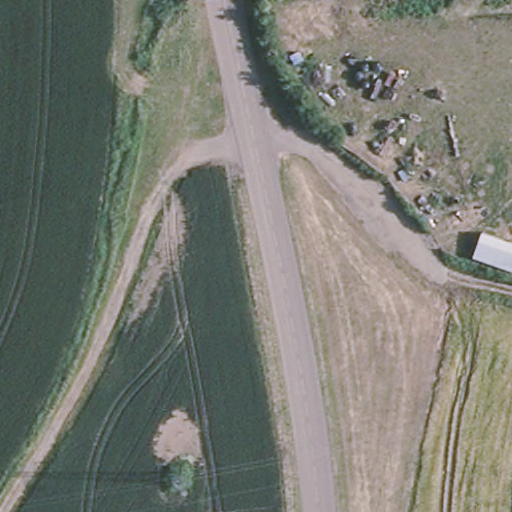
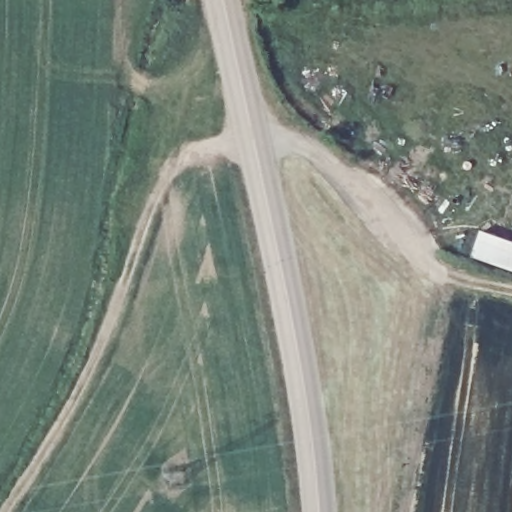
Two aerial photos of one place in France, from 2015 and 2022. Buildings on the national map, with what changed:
unchanged [(512,243),(512,269),(474,256),(480,232),(512,243)]

